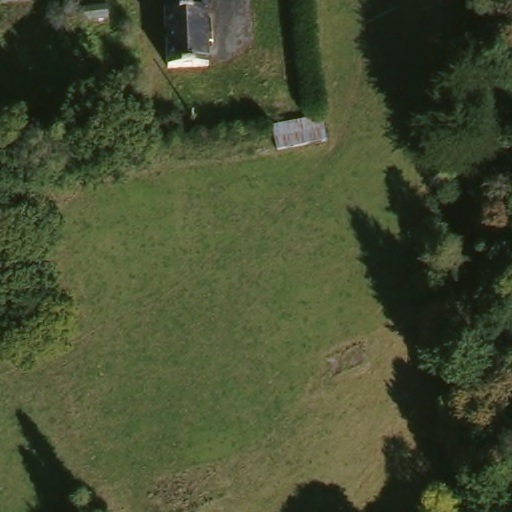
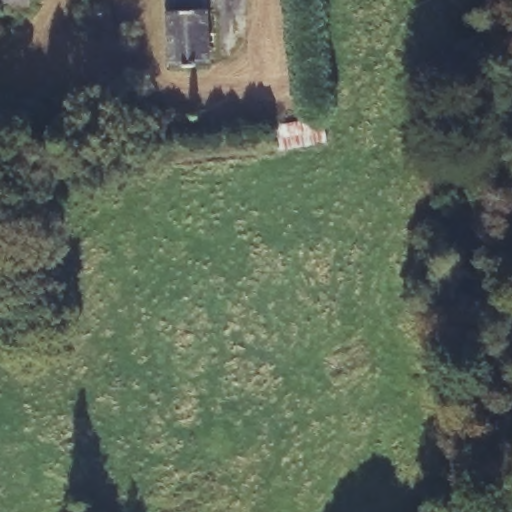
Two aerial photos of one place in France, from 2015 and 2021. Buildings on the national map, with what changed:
unchanged [(0,4),(0,0),(23,0),(23,3),(0,4)]
unchanged [(164,66),(162,0),(202,0),(207,67),(164,66)]
unchanged [(282,155),(280,141),(278,131),(319,126),(323,126),(327,148),(282,155)]

